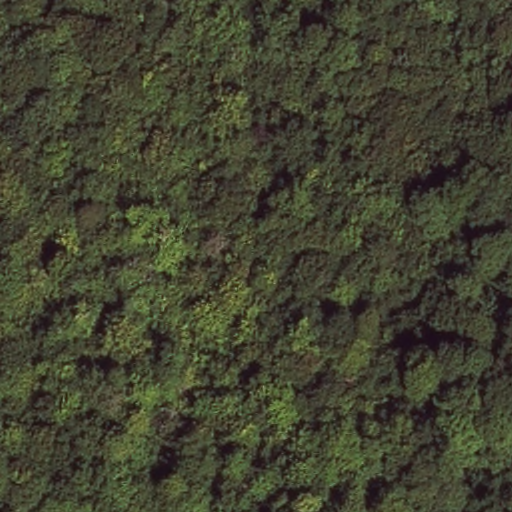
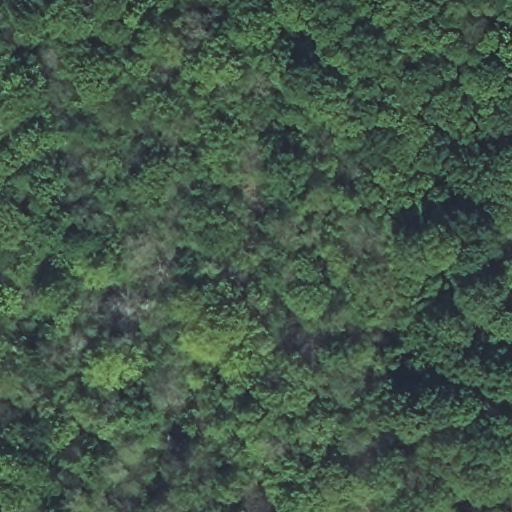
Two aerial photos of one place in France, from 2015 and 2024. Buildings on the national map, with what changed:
[]

